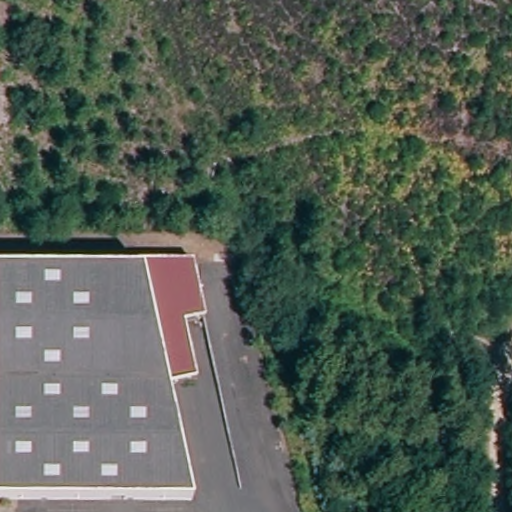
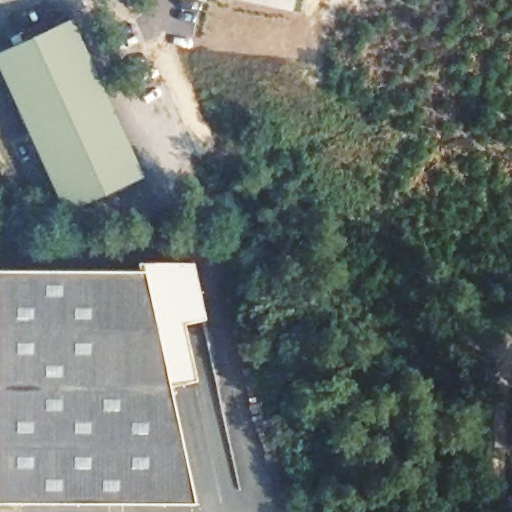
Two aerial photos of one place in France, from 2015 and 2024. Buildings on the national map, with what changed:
new [(72,15),(73,16),(71,16),(98,70),(97,71),(78,80),(82,89),(75,92),(119,184),(145,172),(146,171),(147,172),(68,210),(67,209),(68,208),(0,64),(0,49),(72,15)]
new [(82,89),(78,80),(97,71),(145,172),(119,184),(75,92),(82,89)]
unchanged [(128,246),(175,245),(181,244),(195,304),(191,305),(174,309),(187,364),(157,371),(130,254),(128,246)]
unchanged [(130,254),(157,371),(183,485),(0,487),(0,255),(130,254)]

